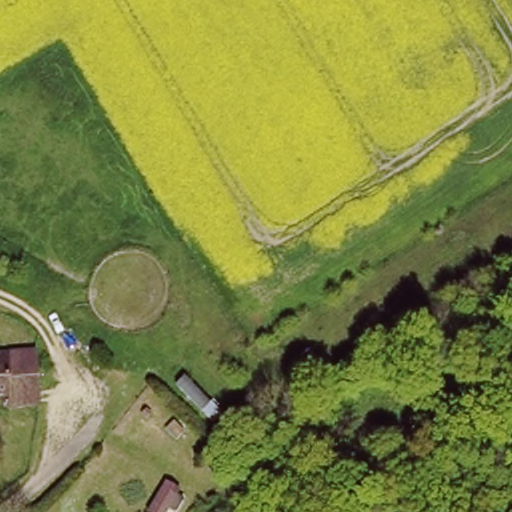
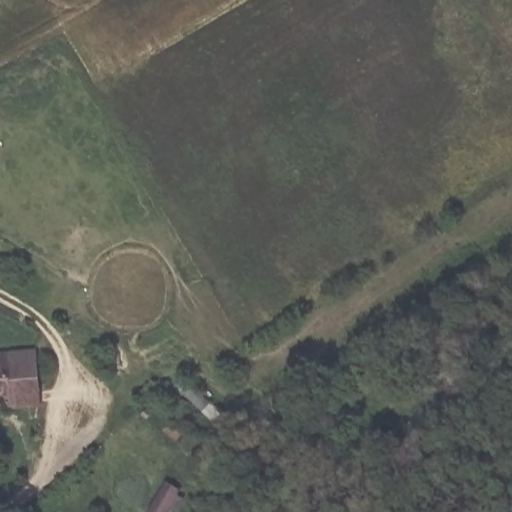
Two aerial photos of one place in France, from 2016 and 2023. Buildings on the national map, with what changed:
unchanged [(11,370),(25,369),(28,400),(5,401),(4,391),(0,391),(0,350),(10,349),(11,370)]
unchanged [(178,486),(165,512),(147,512),(146,512),(162,479),(178,486)]

